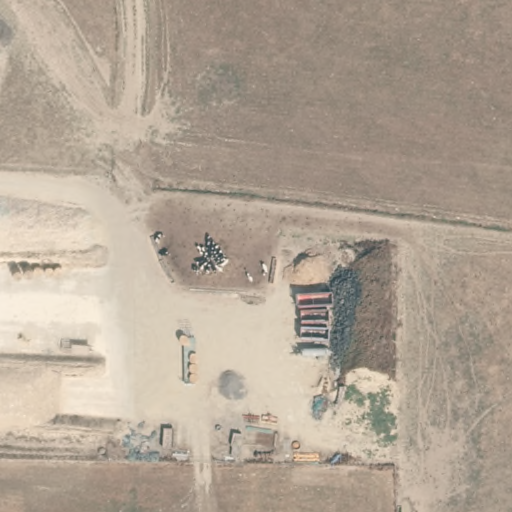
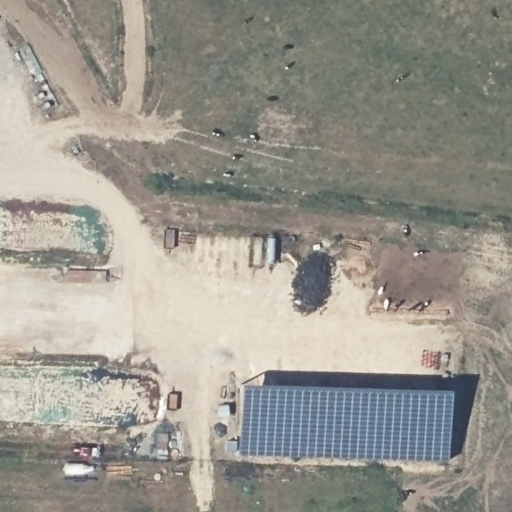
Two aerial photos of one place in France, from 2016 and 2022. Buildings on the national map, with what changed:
new [(240,384),(450,391),(447,461),(237,454),(240,384)]

